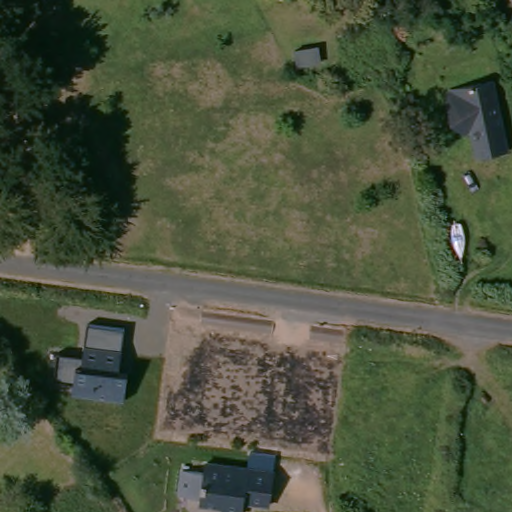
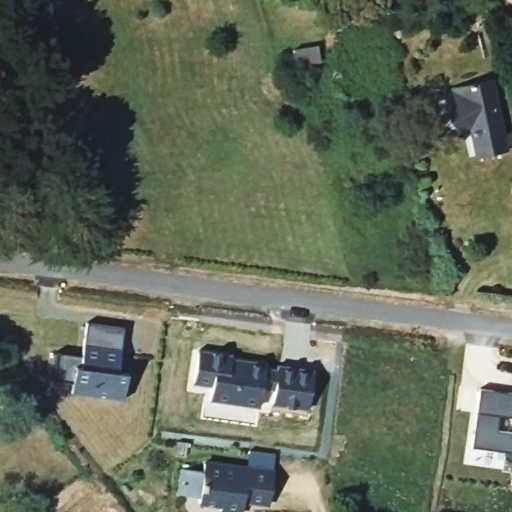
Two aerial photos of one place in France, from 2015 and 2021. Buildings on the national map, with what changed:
unchanged [(495,80),(508,150),(476,156),(470,129),(446,90),(495,80)]
unchanged [(113,372),(77,366),(82,326),(117,331),(113,372)]
unchanged [(72,393),(74,380),(57,378),(60,353),(79,356),(77,366),(113,372),(114,368),(129,371),(125,400),(72,393)]
new [(199,353),(234,358),(233,362),(268,366),(268,371),(280,373),(281,368),(318,374),(312,412),(275,407),(277,393),(265,391),(262,410),(211,403),(213,389),(194,386),(199,353)]
new [(480,388),(512,394),(512,452),(472,447),(480,388)]
unchanged [(263,507),(240,504),(239,512),(216,512),(214,512),(214,506),(197,503),(198,499),(175,497),(178,476),(202,480),(204,464),(270,473),(263,507)]

